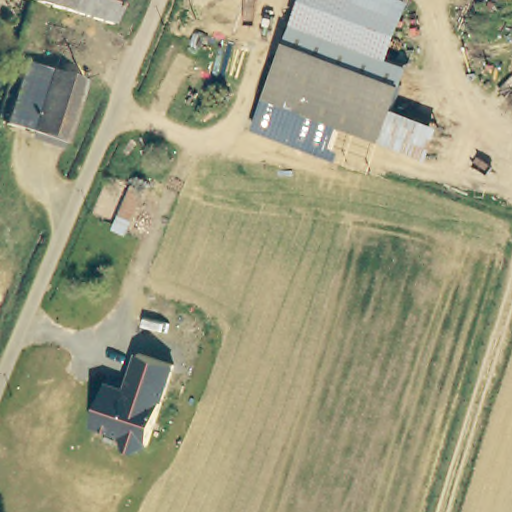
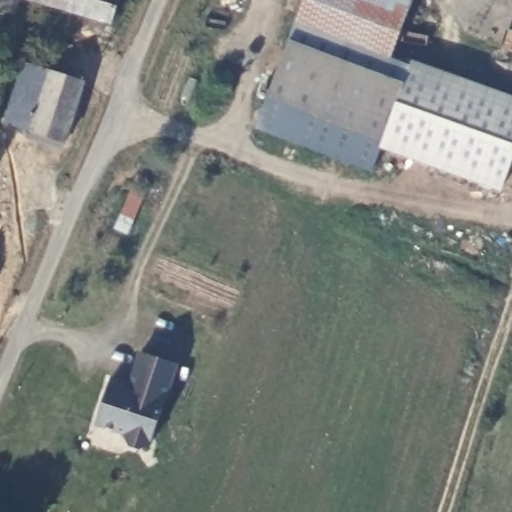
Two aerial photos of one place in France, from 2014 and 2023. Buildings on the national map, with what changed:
unchanged [(16,0),(35,0),(33,5),(16,0)]
unchanged [(33,5),(35,0),(118,0),(111,27),(68,15),(37,6),(33,5)]
unchanged [(306,0),(414,0),(396,47),(300,14),(306,0)]
unchanged [(297,97),(285,130),(261,121),(300,14),(396,47),(418,55),(388,132),(297,97)]
new [(512,98),(512,166),(502,192),(380,149),(388,132),(415,62),(512,98)]
unchanged [(28,134),(3,125),(25,64),(31,67),(50,74),(28,134)]
unchanged [(62,146),(28,134),(50,74),(84,86),(62,146)]
new [(256,132),(261,121),(285,130),(297,97),(388,132),(380,149),(372,174),(256,132)]
unchanged [(128,385),(139,353),(177,365),(166,400),(165,401),(150,442),(153,444),(137,451),(130,448),(123,435),(96,425),(110,381),(128,385)]

